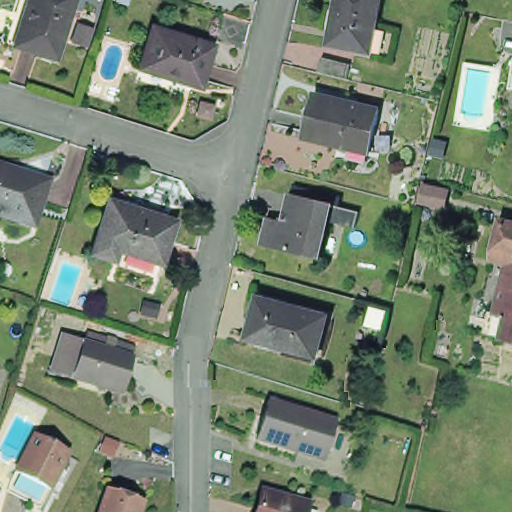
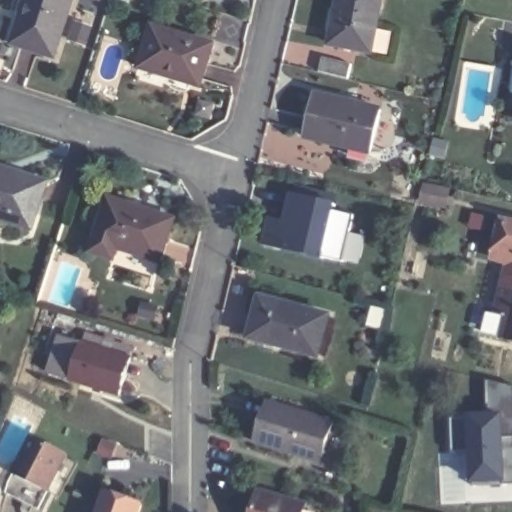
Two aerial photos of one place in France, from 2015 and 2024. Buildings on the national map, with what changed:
unchanged [(20,40),(29,10),(24,9),(27,0),(71,0),(55,51),(20,40)]
unchanged [(115,0),(116,0),(129,0),(128,5),(115,0)]
unchanged [(330,42),(338,0),(381,0),(371,50),(330,42)]
unchanged [(213,40),(201,80),(141,62),(153,21),(213,40)]
unchanged [(323,57),(351,64),(349,78),(319,71),(323,57)]
unchanged [(512,82),(512,99),(509,99),(512,82)]
unchanged [(314,87),(381,104),(371,146),(304,130),(314,87)]
unchanged [(40,174),(28,216),(0,207),(0,161),(40,174)]
unchanged [(110,197),(176,219),(163,260),(119,247),(115,258),(93,251),(110,197)]
unchanged [(510,210),(512,210),(512,250),(501,247),(510,210)]
unchanged [(259,262),(265,237),(280,240),(286,212),(328,222),(354,229),(349,245),(324,239),(315,275),(259,262)]
unchanged [(494,302),(501,303),(512,260),(512,329),(489,323),(494,302)]
unchanged [(261,297),(328,315),(318,355),(250,337),(261,297)]
unchanged [(109,400),(61,385),(73,348),(121,363),(109,400)]
new [(463,414),(492,410),(489,408),(486,406),(485,380),(512,385),(512,483),(471,485),(467,451),(452,451),(449,417),(463,416),(463,414)]
unchanged [(286,463),(248,451),(261,410),(328,431),(316,466),(314,472),(286,463)]
unchanged [(18,472),(38,436),(71,453),(64,467),(53,490),(43,509),(8,491),(14,481),(18,472)]
unchanged [(100,497),(136,508),(135,512),(95,512),(100,497)]
unchanged [(271,501),(299,510),(299,512),(250,512),(253,500),(267,503),(271,501)]

